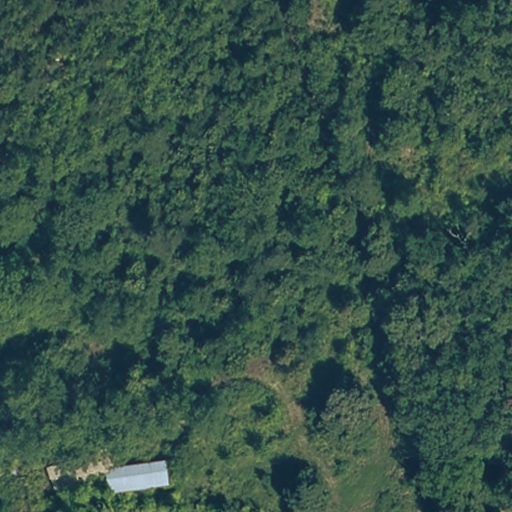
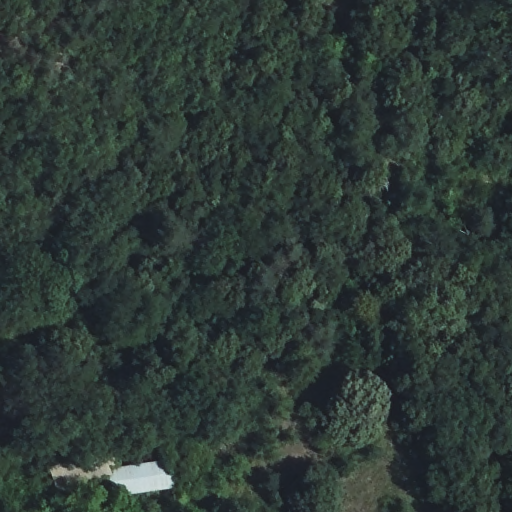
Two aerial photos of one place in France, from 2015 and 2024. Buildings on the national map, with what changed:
unchanged [(113,480),(65,499),(55,474),(117,451),(126,469),(174,463),(177,493),(118,498),(113,480)]

